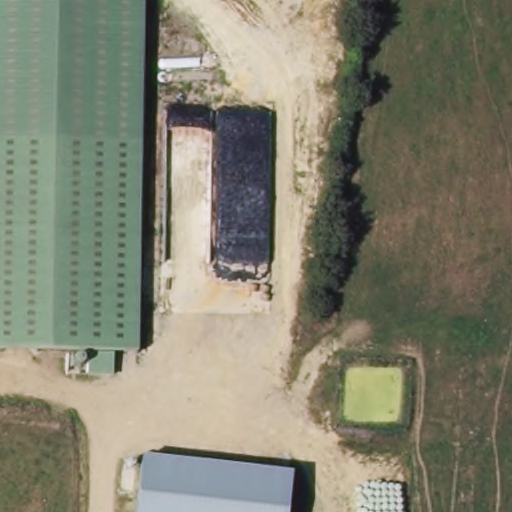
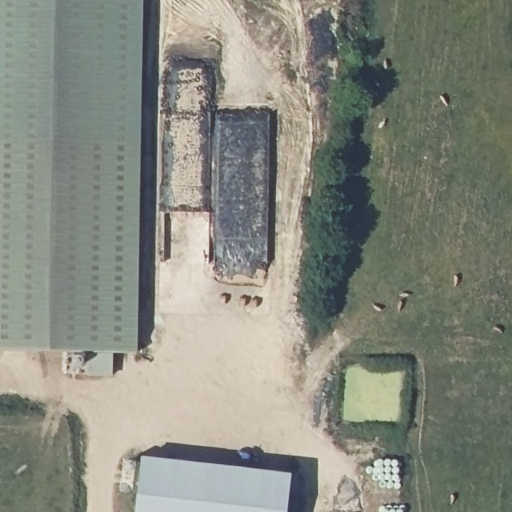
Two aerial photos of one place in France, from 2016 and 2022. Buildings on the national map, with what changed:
unchanged [(148,144),(0,137),(0,0),(141,0),(148,144)]
unchanged [(0,346),(0,137),(148,144),(138,352),(0,346)]
unchanged [(288,475),(286,512),(133,512),(140,457),(288,475)]

